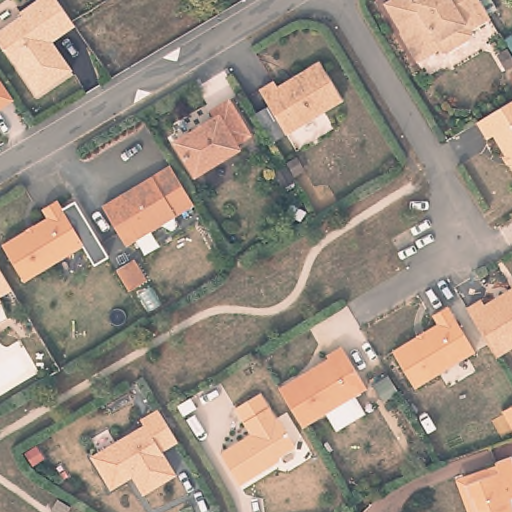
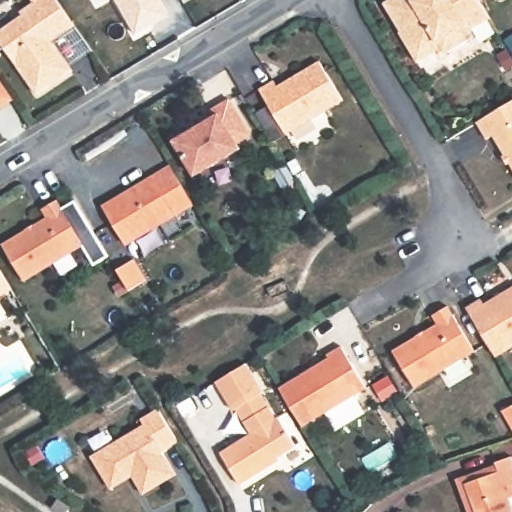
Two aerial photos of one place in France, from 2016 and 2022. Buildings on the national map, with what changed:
new [(135,34),(114,0),(160,0),(168,14),(135,34)]
unchanged [(446,59),(437,59),(436,56),(413,70),(396,40),(397,39),(381,10),(399,0),(403,0),(408,8),(422,0),(471,0),(486,25),(469,36),(467,46),(446,59)]
unchanged [(66,83),(32,105),(0,58),(0,38),(19,26),(16,23),(46,3),(66,30),(71,36),(46,53),(66,83)]
unchanged [(273,90),(315,65),(339,104),(282,138),(255,94),(269,85),(273,90)]
unchanged [(12,107),(0,115),(0,87),(2,91),(12,107)]
unchanged [(215,115),(212,109),(231,98),(252,134),(239,142),(241,146),(196,174),(175,139),(215,115)]
unchanged [(496,134),(491,138),(479,120),(512,100),(512,161),(496,134)]
unchanged [(122,253),(100,216),(167,175),(190,213),(122,253)]
unchanged [(49,216),(44,209),(57,200),(85,244),(27,279),(4,243),(49,216)]
unchanged [(136,258),(149,279),(131,290),(118,269),(136,258)]
unchanged [(0,296),(0,267),(13,289),(0,296)]
unchanged [(483,298),(487,303),(500,294),(503,299),(512,294),(512,345),(497,354),(470,307),(483,298)]
unchanged [(0,300),(0,296),(2,299),(0,300)]
unchanged [(438,322),(434,314),(450,304),(476,348),(415,385),(393,349),(438,322)]
unchanged [(282,386),(331,357),(330,354),(345,344),(369,386),(305,424),(282,386)]
unchanged [(254,431),(239,405),(263,390),(279,416),(281,414),(298,442),(267,462),(268,464),(242,481),(223,449),(254,431)]
unchanged [(191,396),(197,407),(184,414),(177,404),(191,396)]
new [(512,405),(512,436),(500,412),(512,405)]
unchanged [(165,453),(178,475),(147,494),(136,477),(116,489),(96,457),(147,425),(145,419),(161,409),(182,443),(165,453)]
unchanged [(455,479),(497,464),(496,461),(512,455),(512,512),(467,512),(455,479)]

